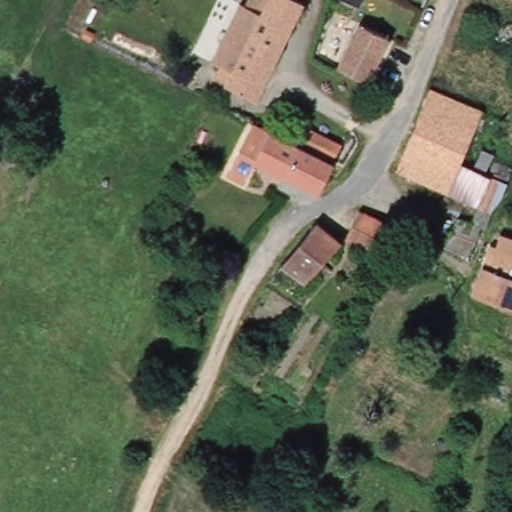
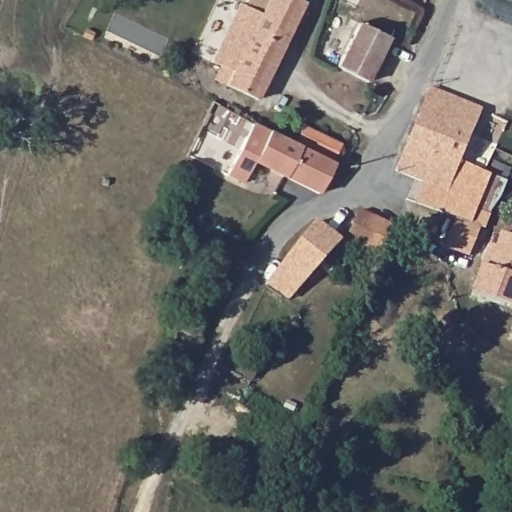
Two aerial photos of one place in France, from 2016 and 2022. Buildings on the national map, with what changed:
unchanged [(240,8),(246,10),(247,0),(264,0),(268,5),(271,0),(292,0),(305,7),(256,104),(216,84),(221,70),(212,66),(240,8)]
unchanged [(406,0),(422,0),(412,29),(398,24),(406,0)]
unchanged [(340,36),(353,42),(362,25),(391,41),(366,86),(336,69),(342,59),(331,52),(340,36)]
unchanged [(498,209),(495,215),(494,214),(485,210),(418,180),(398,173),(433,85),(487,108),(465,160),(498,174),(497,178),(510,184),(498,209)]
unchanged [(258,125),(339,166),(323,197),(260,165),(249,185),(232,176),(258,125)]
unchanged [(308,130),(346,148),(338,164),(301,144),(308,130)]
unchanged [(365,211),(400,230),(392,252),(388,260),(350,242),(365,211)]
unchanged [(320,225),(335,238),(347,247),(314,288),(288,267),(320,225)]
unchanged [(502,270),(510,232),(512,233),(512,308),(495,302),(484,298),(493,267),(502,270)]
unchanged [(183,295),(190,298),(194,287),(212,295),(196,336),(170,325),(183,295)]

